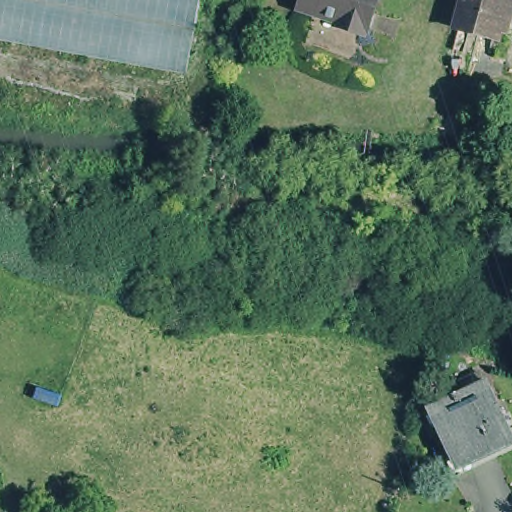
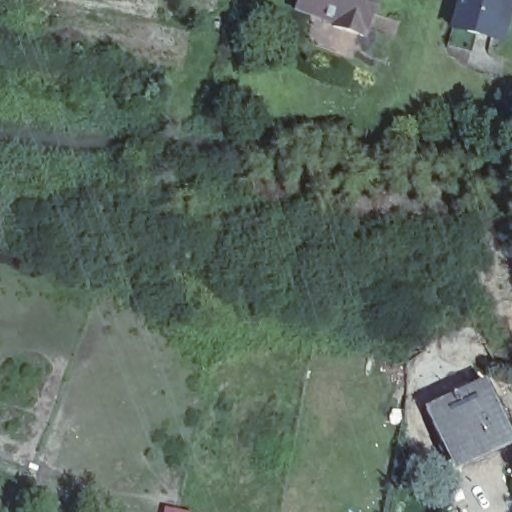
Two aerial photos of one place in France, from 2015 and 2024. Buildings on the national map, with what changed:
demolished [(173,109),(0,79),(0,0),(199,0),(173,109)]
unchanged [(369,28),(368,28),(366,32),(336,22),(337,17),(298,4),(299,0),(379,0),(369,28)]
unchanged [(511,22),(506,21),(503,29),(463,17),(467,0),(512,0),(512,18),(511,22)]
unchanged [(491,380),(512,427),(512,440),(459,465),(432,408),(491,380)]

